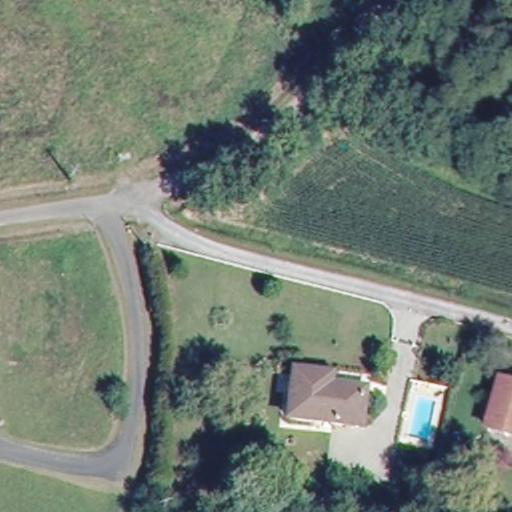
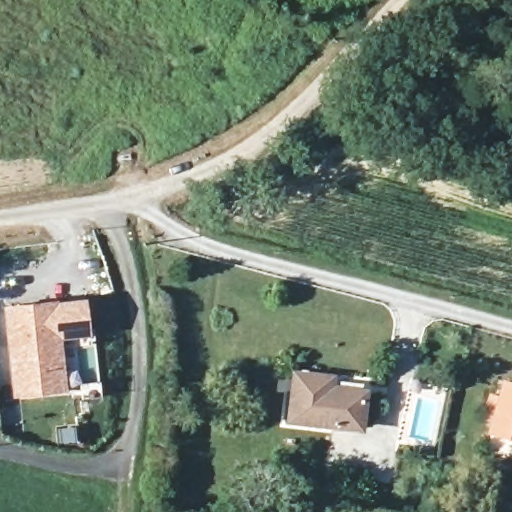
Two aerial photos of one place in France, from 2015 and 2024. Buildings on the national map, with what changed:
new [(17,362),(10,306),(84,296),(87,325),(57,328),(64,382),(25,387),(20,387),(17,362)]
unchanged [(288,415),(293,367),(331,372),(330,382),(365,387),(360,423),(288,415)]
unchanged [(487,408),(491,394),(500,396),(504,383),(512,386),(512,433),(492,426),(496,411),(487,408)]

